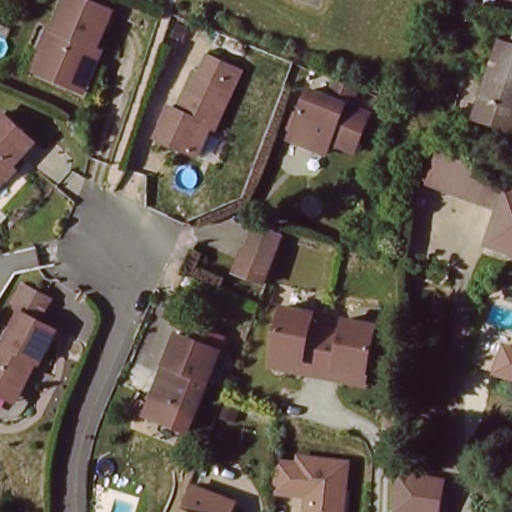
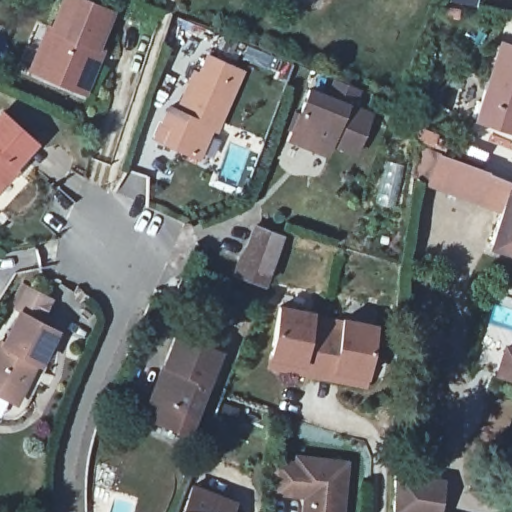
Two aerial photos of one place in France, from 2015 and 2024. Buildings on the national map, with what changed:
unchanged [(65,81),(47,74),(35,69),(42,49),(55,19),(62,21),(69,0),(93,0),(114,9),(102,42),(102,47),(90,77),(86,89),(65,81)]
unchanged [(512,127),(473,113),(499,37),(512,42),(512,127)]
unchanged [(163,117),(169,105),(175,107),(192,69),(201,71),(209,54),(241,67),(214,126),(208,123),(193,152),(162,137),(155,134),(163,117)]
unchanged [(289,136),(292,129),(286,127),(294,109),(298,110),(307,87),(332,97),(336,89),(332,87),(336,76),(355,84),(347,103),(370,113),(356,147),(334,139),(330,146),(327,152),(289,136)]
unchanged [(32,143),(28,148),(12,167),(14,169),(7,177),(0,185),(0,117),(2,115),(32,143)]
unchanged [(444,171),(490,192),(500,197),(493,215),(424,186),(438,152),(450,157),(444,171)]
unchanged [(450,157),(476,170),(496,179),(510,185),(512,185),(512,259),(488,250),(509,201),(500,197),(490,192),(444,171),(450,157)]
unchanged [(229,254),(234,241),(245,231),(252,210),(293,224),(275,271),(229,254)]
unchanged [(15,304),(22,291),(47,302),(39,316),(15,304)]
unchanged [(279,308),(364,322),(352,383),(266,369),(279,308)]
unchanged [(11,401),(0,396),(0,342),(5,345),(18,313),(55,331),(41,364),(37,362),(19,404),(11,401)]
unchanged [(192,417),(157,405),(164,387),(175,354),(169,352),(179,322),(189,326),(192,315),(224,325),(192,417)]
unchanged [(512,381),(492,375),(503,343),(512,346),(512,381)]
unchanged [(301,512),(301,497),(273,495),(274,462),(296,462),(296,454),(349,457),(347,512),(301,512)]
unchanged [(447,460),(442,512),(414,512),(390,508),(395,455),(447,460)]
unchanged [(181,512),(194,476),(222,486),(233,490),(225,512),(181,512)]

